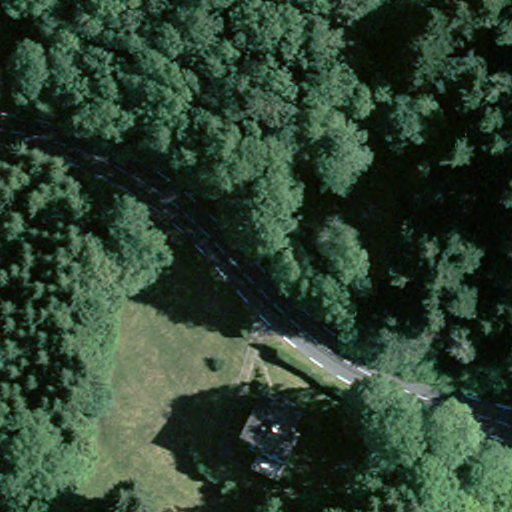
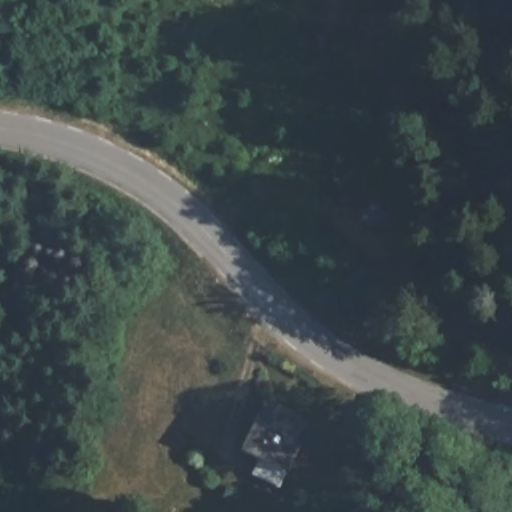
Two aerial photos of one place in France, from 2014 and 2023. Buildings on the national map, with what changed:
unchanged [(263,407),(300,420),(293,447),(299,448),(290,474),(245,459),(263,407)]

